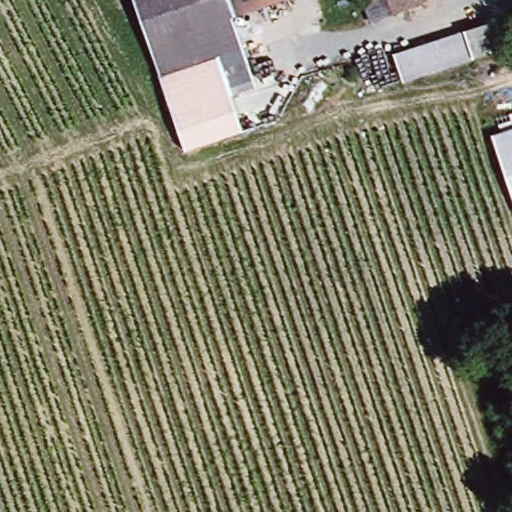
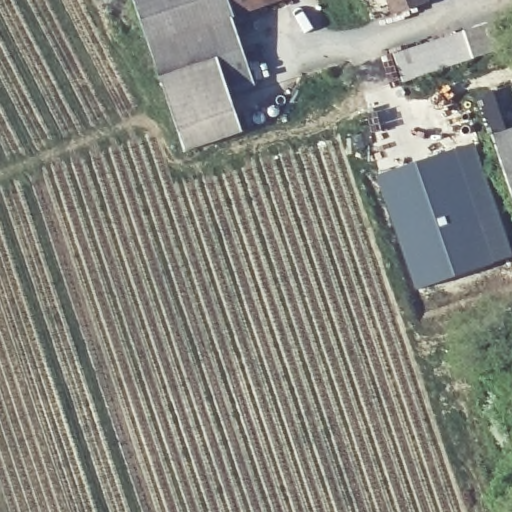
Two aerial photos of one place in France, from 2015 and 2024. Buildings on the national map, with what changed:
unchanged [(235,16),(151,46),(135,0),(278,0),(235,16)]
unchanged [(368,13),(364,0),(402,0),(368,13)]
unchanged [(246,46),(162,77),(151,46),(235,16),(246,46)]
unchanged [(372,55),(475,25),(477,37),(482,54),(381,85),(376,70),(372,55)]
unchanged [(255,88),(230,96),(241,133),(185,152),(162,77),(242,48),(255,88)]
unchanged [(512,198),(492,137),(512,130),(512,198)]
new [(475,144),(512,254),(512,257),(416,290),(377,177),(475,144)]

